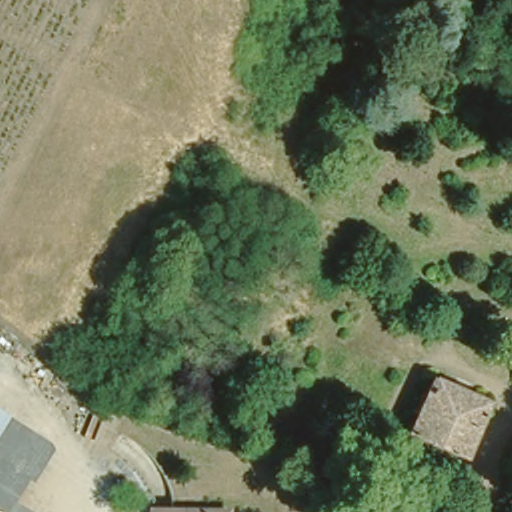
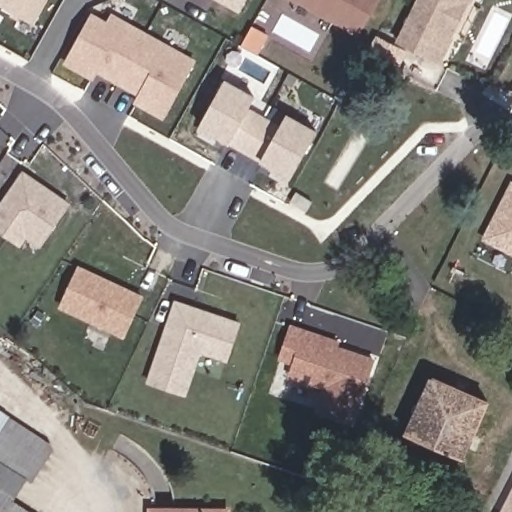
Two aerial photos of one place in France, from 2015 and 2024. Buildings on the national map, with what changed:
new [(0,2),(0,0),(49,0),(36,23),(0,2)]
new [(239,11),(220,0),(245,0),(239,11)]
new [(359,34),(298,0),(377,0),(359,34)]
new [(440,63),(398,42),(418,0),(471,0),(470,4),(453,37),(440,63)]
new [(120,81),(99,69),(94,77),(67,62),(94,15),(109,23),(113,15),(146,34),(120,81)]
new [(165,117),(138,101),(142,93),(120,81),(146,34),(196,61),(165,117)]
new [(265,119),(247,151),(201,126),(226,81),(256,98),(249,110),(265,119)]
new [(292,177),(247,151),(265,119),(281,128),(288,116),(317,132),(292,177)]
new [(35,222),(20,244),(0,230),(0,207),(25,173),(69,204),(49,232),(40,245),(26,235),(35,222)]
new [(482,239),(511,184),(512,184),(512,254),(482,239)]
new [(308,211),(291,201),(296,191),(313,201),(308,211)]
new [(61,304),(80,266),(121,286),(126,288),(142,296),(124,334),(61,304)]
new [(149,380),(176,301),(195,307),(211,313),(239,323),(227,359),(200,349),(185,393),(149,380)]
new [(316,410),(325,387),(290,374),(294,362),(280,357),(291,326),(307,331),(337,342),(336,347),(305,336),(373,360),(351,422),(316,410)]
unchanged [(485,401),(461,455),(406,427),(430,374),(485,401)]
unchanged [(38,456),(0,432),(0,408),(48,440),(38,456)]
unchanged [(11,497),(34,512),(0,512),(0,432),(38,456),(11,497)]
new [(498,512),(512,486),(512,512),(498,512)]
unchanged [(227,512),(150,512),(151,502),(228,506),(227,512)]

